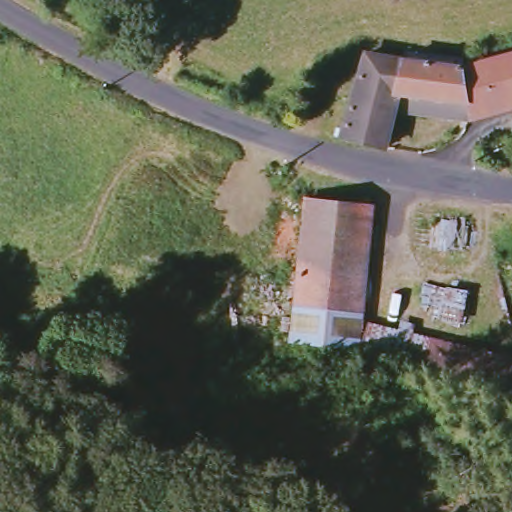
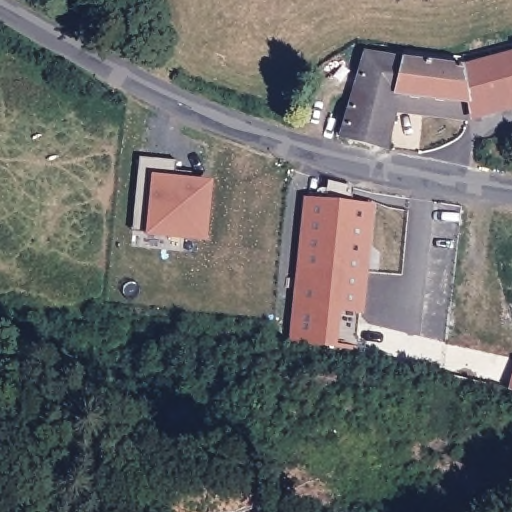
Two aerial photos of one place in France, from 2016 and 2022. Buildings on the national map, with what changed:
unchanged [(381,154),(331,141),(333,134),(340,136),(363,59),(460,71),(467,120),(466,124),(421,119),(391,115),(381,154)]
unchanged [(460,71),(512,59),(512,106),(467,120),(460,71)]
new [(177,161),(176,177),(214,182),(207,245),(145,237),(145,232),(132,232),(140,157),(177,161)]
unchanged [(297,305),(299,287),(289,286),(290,273),(300,273),(307,200),(372,207),(360,311),(297,305)]
unchanged [(472,256),(415,249),(420,212),(476,220),(472,256)]
unchanged [(465,329),(416,318),(421,285),(471,292),(465,329)]
unchanged [(294,340),(297,305),(360,311),(360,321),(358,347),(294,340)]
unchanged [(511,388),(357,353),(358,347),(360,321),(428,335),(500,352),(512,354),(512,389),(511,388)]

